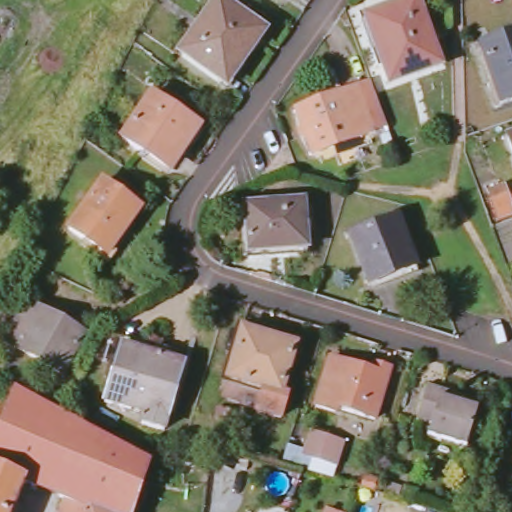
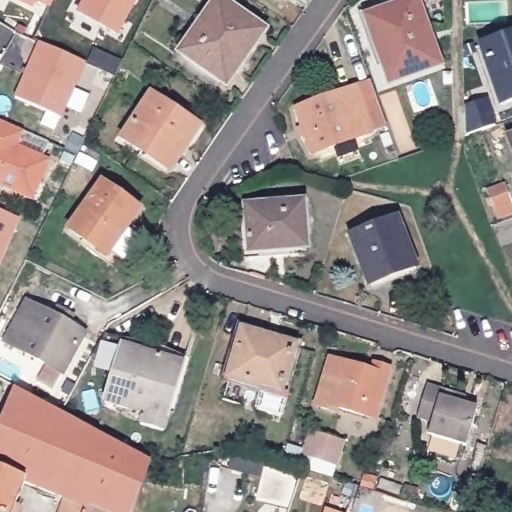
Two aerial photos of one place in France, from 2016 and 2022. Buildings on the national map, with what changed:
new [(32,7),(19,0),(35,0),(32,7)]
new [(37,0),(51,0),(48,6),(37,0)]
new [(115,34),(77,12),(84,0),(134,0),(115,34)]
unchanged [(183,57),(223,1),(262,29),(223,85),(183,57)]
unchanged [(370,21),(414,3),(437,66),(392,82),(370,21)]
unchanged [(512,37),(512,101),(502,105),(482,48),(512,37)]
new [(63,117),(15,97),(38,42),(87,63),(63,117)]
unchanged [(292,116),(352,94),(366,88),(382,131),(368,137),(309,159),(292,116)]
unchanged [(123,140),(152,96),(200,127),(188,146),(183,142),(165,168),(123,140)]
new [(23,131),(19,146),(52,160),(33,200),(0,188),(0,121),(23,131)]
unchanged [(512,139),(512,147),(510,140),(512,139)]
unchanged [(71,231),(102,185),(140,211),(107,255),(71,231)]
unchanged [(269,247),(250,249),(246,207),(303,202),(307,249),(269,252),(269,247)]
new [(21,220),(0,269),(0,210),(21,220)]
unchanged [(350,237),(397,220),(415,268),(370,286),(350,237)]
unchanged [(5,342),(27,303),(85,333),(62,373),(5,342)]
unchanged [(257,411),(263,390),(228,379),(242,331),(296,346),(282,395),(287,397),(280,418),(257,411)]
unchanged [(142,425),(145,413),(105,401),(122,347),(182,365),(162,431),(142,425)]
unchanged [(337,407),(335,411),(317,406),(330,360),(372,372),(373,365),(390,370),(375,418),(337,407)]
unchanged [(25,393),(30,386),(50,396),(46,405),(25,393)]
unchanged [(467,446),(428,434),(432,423),(417,419),(427,387),(461,397),(467,398),(465,405),(477,408),(467,446)]
unchanged [(151,465),(147,477),(136,512),(85,512),(87,508),(25,483),(13,512),(0,512),(0,426),(15,391),(151,465)]
unchanged [(305,456),(311,433),(345,442),(338,466),(305,456)]
unchanged [(333,512),(323,512),(324,510),(333,512)]

